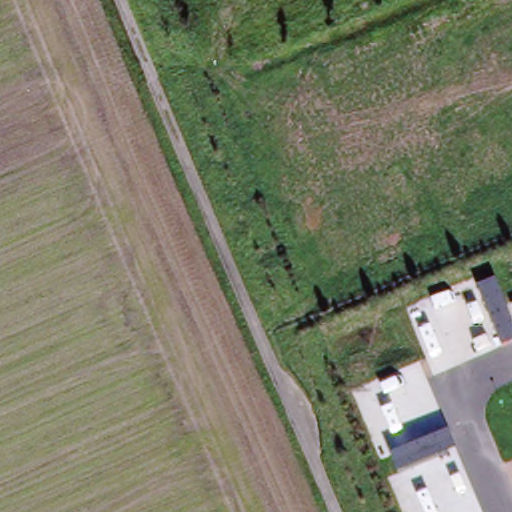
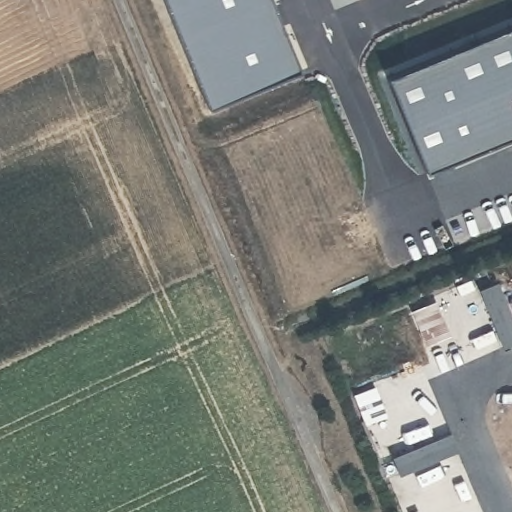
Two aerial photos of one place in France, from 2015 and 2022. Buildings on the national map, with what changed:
new [(303,73),(209,111),(164,0),(273,0),(303,73)]
new [(389,79),(512,27),(512,136),(427,172),(389,79)]
unchanged [(497,280),(512,318),(512,344),(503,348),(478,289),(497,280)]
unchanged [(391,456),(450,431),(457,451),(399,475),(391,456)]

